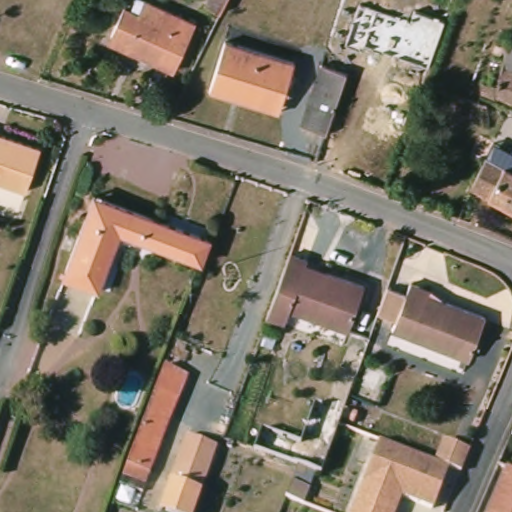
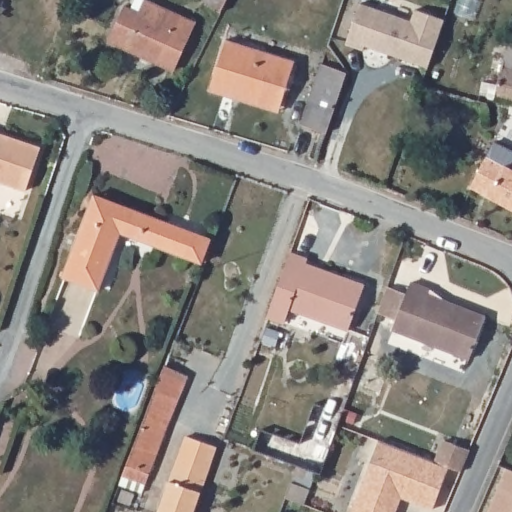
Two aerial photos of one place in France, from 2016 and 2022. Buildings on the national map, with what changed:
unchanged [(198,28),(176,77),(109,49),(131,0),(154,0),(151,8),(198,28)]
unchanged [(205,7),(208,0),(230,0),(224,14),(205,7)]
new [(445,18),(429,67),(347,42),(361,2),(412,20),(415,8),(445,18)]
new [(511,37),(512,38),(512,59),(507,58),(511,37)]
unchanged [(299,63),(282,114),(210,90),(226,40),(299,63)]
unchanged [(512,107),(482,100),(486,87),(499,90),(507,58),(512,59),(512,107)]
unchanged [(303,127),(323,65),(347,72),(326,134),(303,127)]
unchanged [(1,136),(41,149),(28,192),(0,184),(0,136),(1,136)]
unchanged [(512,159),(512,209),(471,188),(485,156),(490,147),(512,159)]
unchanged [(96,206),(100,194),(107,197),(129,205),(145,211),(218,238),(208,263),(134,235),(124,232),(104,288),(94,285),(70,276),(92,216),(96,206)]
unchanged [(312,266),(333,274),(370,288),(354,329),(297,307),(291,321),(274,315),(297,255),(314,261),(312,266)]
unchanged [(474,362),(398,330),(417,283),(437,291),(435,296),(454,304),(492,320),(474,362)]
unchanged [(175,365),(172,373),(165,369),(167,362),(175,365)]
unchanged [(169,403),(167,412),(176,416),(155,472),(144,468),(140,481),(125,476),(154,397),(169,403)]
unchanged [(402,497),(398,510),(396,512),(353,512),(379,441),(437,462),(441,464),(449,442),(454,443),(470,449),(461,471),(445,512),(417,512),(421,504),(402,497)]
unchanged [(186,446),(201,451),(202,449),(216,454),(194,512),(163,512),(186,446)]
unchanged [(298,467),(308,471),(305,479),(309,481),(304,495),(290,490),(298,467)]
unchanged [(512,472),(512,512),(491,512),(508,470),(512,472)]

